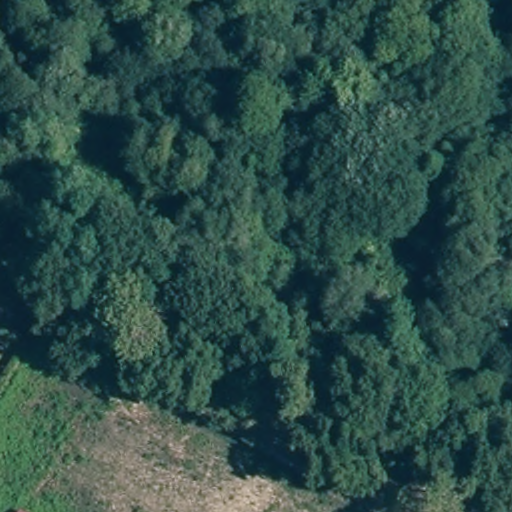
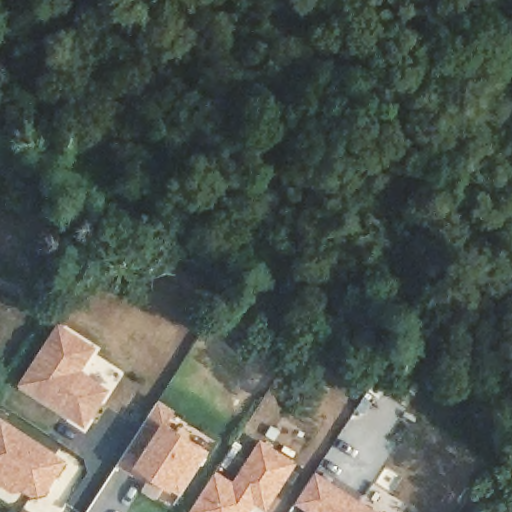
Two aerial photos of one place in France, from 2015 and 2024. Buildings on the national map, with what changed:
new [(96,349),(82,371),(110,390),(84,427),(19,385),(58,323),(96,349)]
new [(165,485),(134,466),(130,471),(114,461),(151,401),(167,411),(159,424),(202,450),(185,478),(177,492),(165,485)]
new [(0,425),(60,461),(51,476),(45,485),(41,492),(29,495),(19,489),(15,496),(0,487),(0,480),(1,478),(0,478),(0,425)]
new [(186,511),(211,469),(231,481),(257,437),(290,457),(263,502),(252,495),(241,512),(188,512),(186,511)]
new [(312,506),(294,496),(311,468),(329,479),(343,488),(383,512),(321,512),(312,506)]

